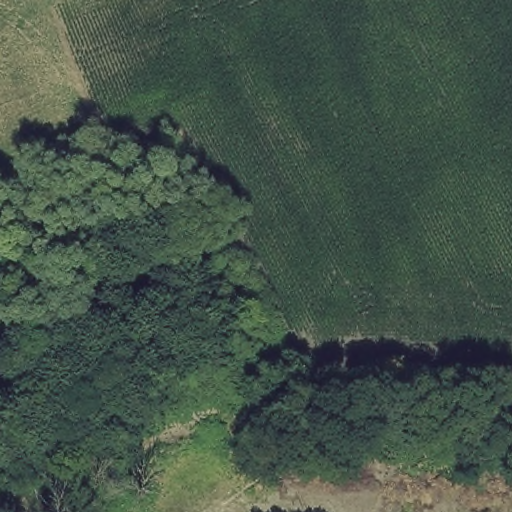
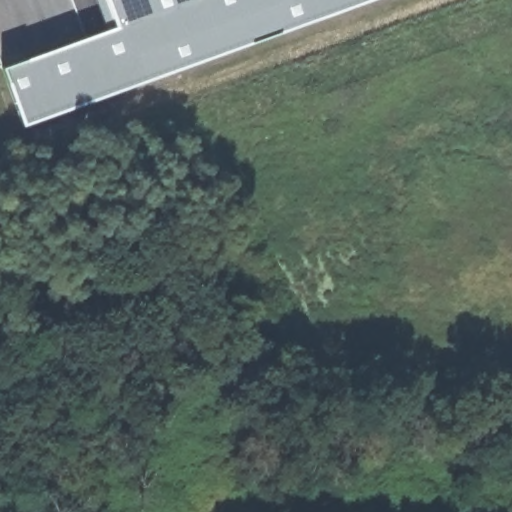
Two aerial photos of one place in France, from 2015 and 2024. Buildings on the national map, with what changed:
new [(23,129),(2,67),(114,26),(105,0),(376,0),(23,129)]

